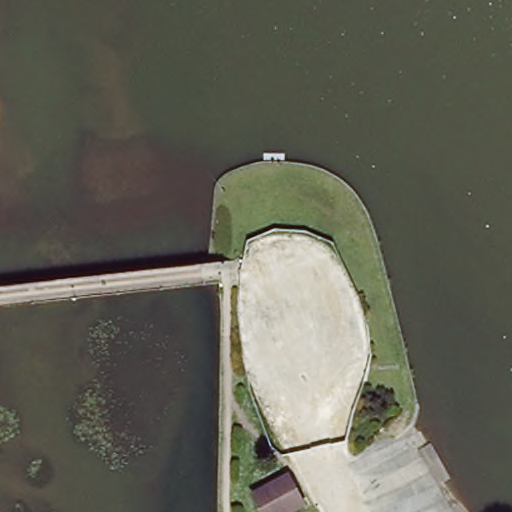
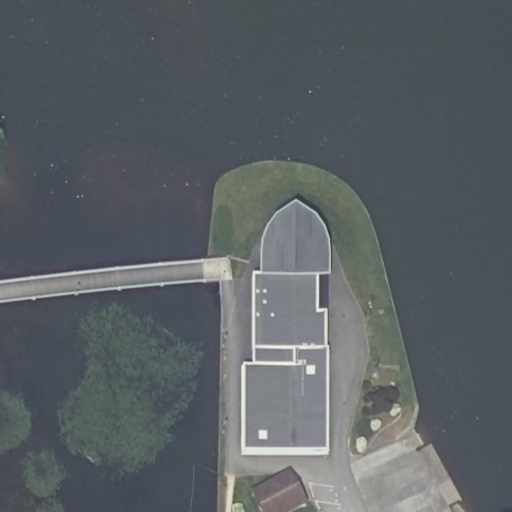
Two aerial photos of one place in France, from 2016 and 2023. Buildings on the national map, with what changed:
new [(240,455),(240,369),(250,370),(250,280),(258,281),(260,251),(267,232),(273,226),(294,212),(315,226),(325,239),(328,252),(330,284),(325,283),(325,353),(327,353),(327,456),(240,455)]
demolished [(253,337),(267,326),(252,301),(308,262),(347,321),(339,325),(351,343),(335,353),(343,368),(310,391),(297,372),(278,379),(253,337)]
unchanged [(285,512),(259,512),(249,493),(284,475),(300,505),(285,512)]

